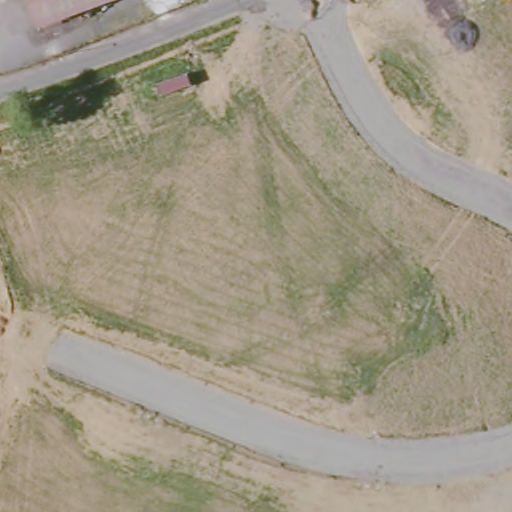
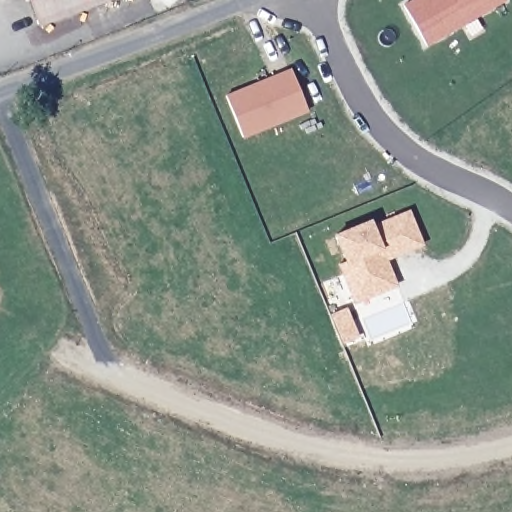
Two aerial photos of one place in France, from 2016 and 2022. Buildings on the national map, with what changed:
unchanged [(105,0),(35,26),(25,0),(105,0)]
new [(411,0),(505,0),(505,1),(426,46),(402,5),(411,0)]
new [(244,140),(227,96),(291,70),(310,112),(244,140)]
new [(387,261),(397,286),(355,303),(339,265),(345,265),(334,236),(370,219),(372,224),(409,210),(422,245),(387,261)]

